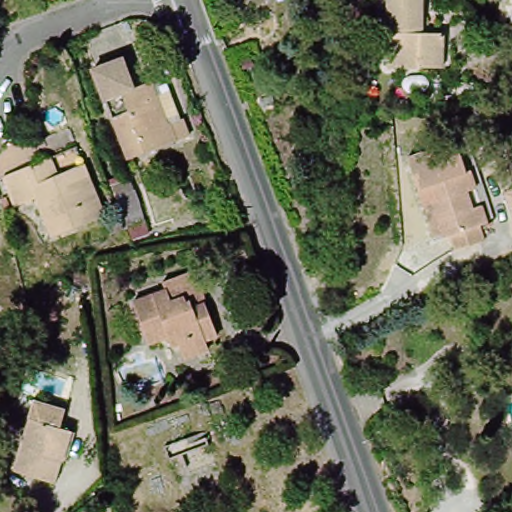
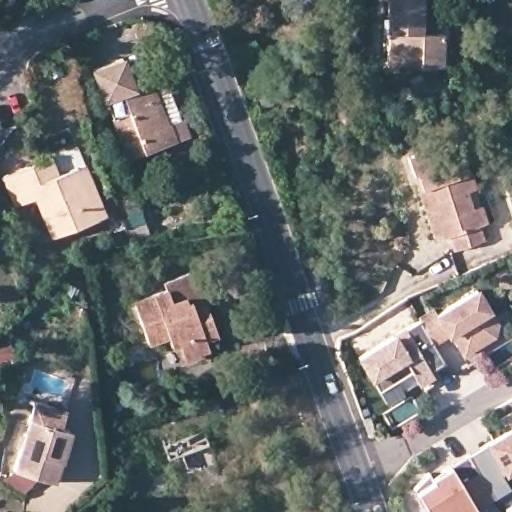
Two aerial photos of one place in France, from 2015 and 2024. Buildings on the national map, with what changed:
unchanged [(422,0),(423,21),(423,29),(442,29),(444,64),(418,63),(386,62),(386,51),(387,0),(422,0)]
unchanged [(189,135),(178,140),(131,156),(109,95),(108,96),(97,67),(127,56),(138,85),(167,75),(189,135)]
unchanged [(84,119),(79,100),(91,97),(95,116),(84,119)]
unchanged [(421,207),(416,190),(411,177),(414,176),(408,156),(435,150),(436,152),(456,145),(466,173),(470,172),(476,187),(467,191),(473,210),(482,206),(487,224),(481,225),(485,240),(452,251),(448,236),(442,238),(441,235),(432,237),(421,207)]
unchanged [(83,162),(105,212),(97,215),(50,235),(34,197),(15,204),(3,176),(41,160),(49,156),(56,173),(75,165),(83,162)]
unchanged [(512,189),(512,213),(505,192),(512,189)]
new [(135,193),(151,237),(133,240),(117,200),(135,193)]
unchanged [(209,345),(212,353),(188,363),(183,348),(176,351),(172,340),(153,348),(136,305),(168,291),(166,286),(196,275),(205,299),(209,308),(221,340),(209,345)]
new [(435,309),(438,314),(478,290),(499,324),(495,336),(465,354),(453,333),(435,343),(420,318),(435,309)]
new [(435,343),(445,361),(430,370),(432,374),(418,381),(410,370),(379,389),(357,354),(420,318),(435,343)]
unchanged [(7,349),(0,356),(0,344),(2,342),(7,349)]
unchanged [(63,413),(58,430),(69,434),(52,486),(13,473),(34,404),(63,413)]
new [(508,426),(512,424),(512,471),(502,476),(511,490),(475,512),(428,512),(415,490),(430,475),(432,480),(445,472),(511,431),(508,426)]

